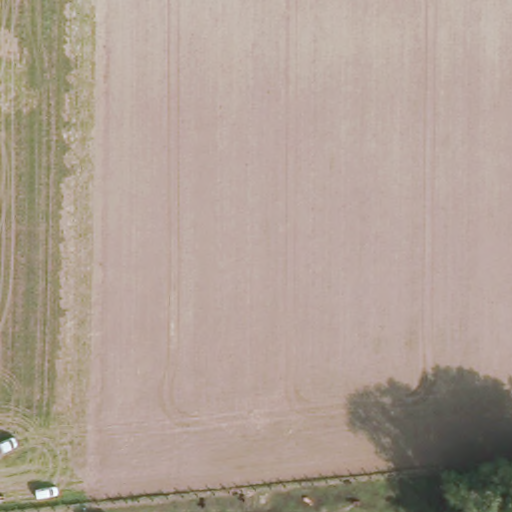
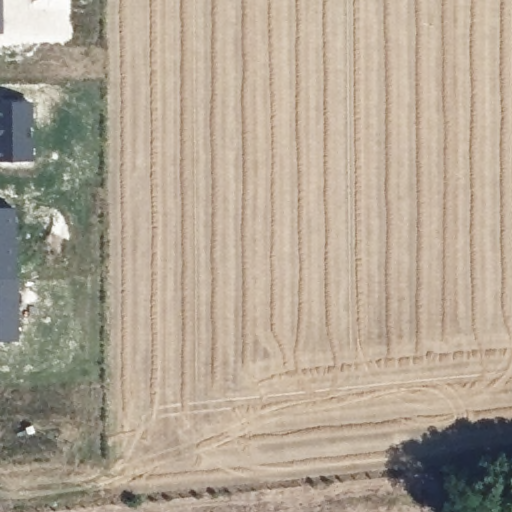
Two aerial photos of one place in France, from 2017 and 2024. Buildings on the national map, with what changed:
new [(0,34),(0,0),(2,0),(2,34),(0,34)]
new [(0,161),(0,102),(32,101),(31,161),(0,161)]
new [(0,341),(0,209),(15,209),(15,278),(18,341),(0,341)]

